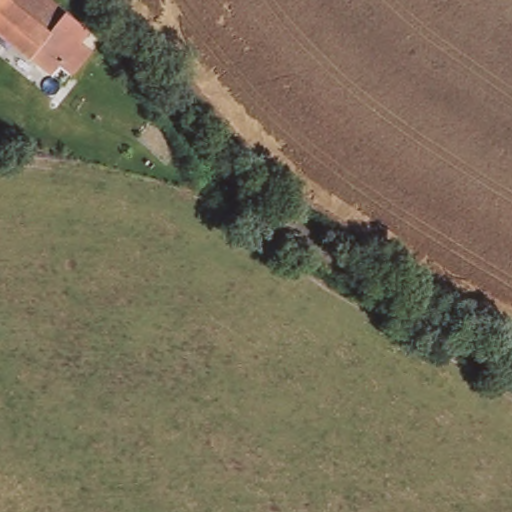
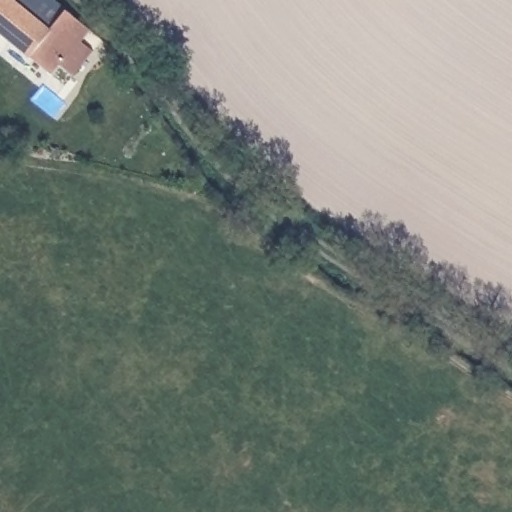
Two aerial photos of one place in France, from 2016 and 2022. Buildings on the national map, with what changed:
unchanged [(25,13),(6,39),(0,35),(0,0),(49,0),(36,18),(25,13)]
unchanged [(42,86),(50,73),(6,39),(25,13),(36,18),(49,0),(57,0),(101,35),(70,73),(73,75),(65,87),(56,97),(52,94),(49,97),(42,94),(44,88),(42,86)]

